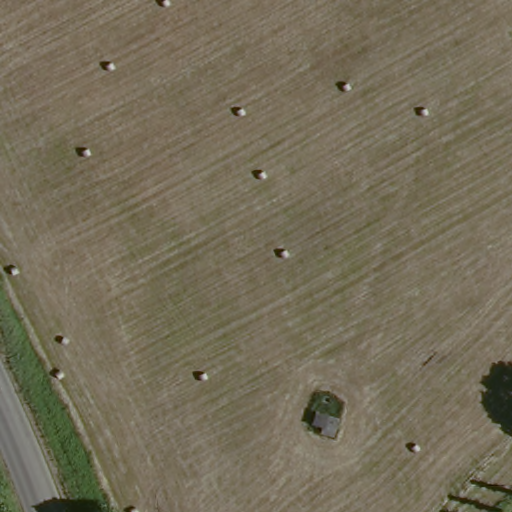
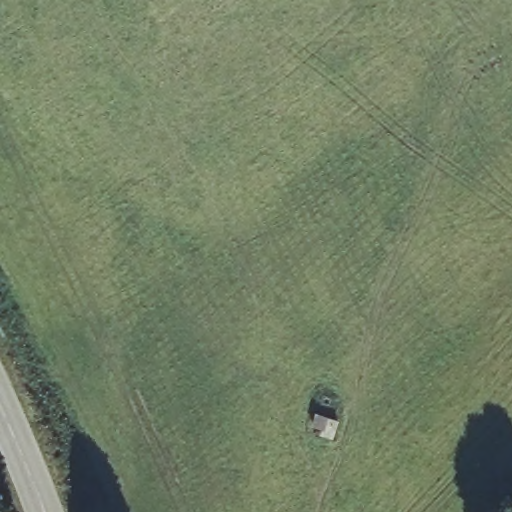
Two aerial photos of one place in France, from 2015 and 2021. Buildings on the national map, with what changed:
unchanged [(311,424),(313,411),(336,419),(331,436),(319,432),(320,425),(311,424)]

